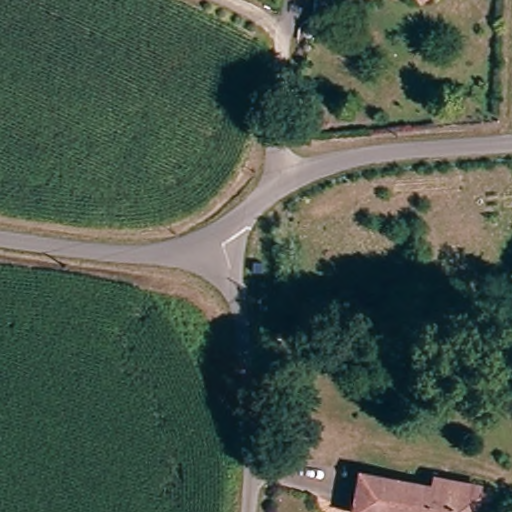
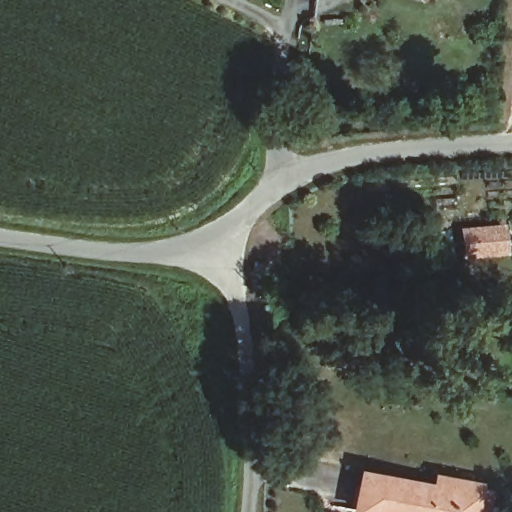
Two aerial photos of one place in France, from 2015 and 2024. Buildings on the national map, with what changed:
unchanged [(420,0),(425,0),(422,3),(420,0)]
new [(464,258),(462,227),(504,223),(507,254),(464,258)]
unchanged [(349,479),(423,485),(424,476),(479,479),(477,506),(477,512),(348,512),(349,479)]

